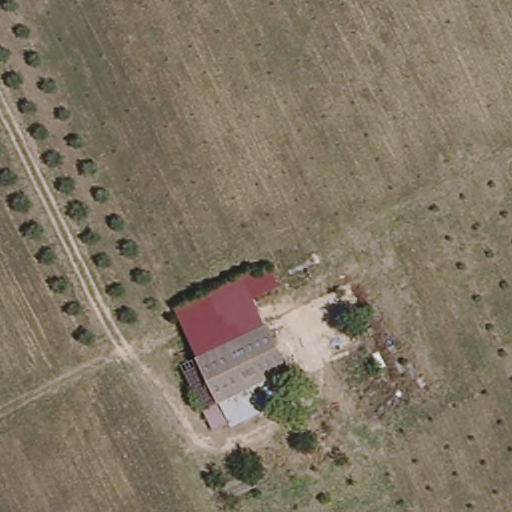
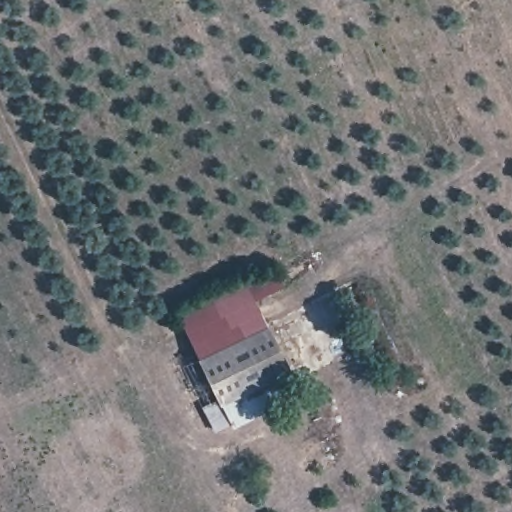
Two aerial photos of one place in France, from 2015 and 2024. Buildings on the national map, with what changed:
unchanged [(256,392),(263,409),(232,423),(197,361),(171,309),(254,270),(258,275),(269,270),(279,290),(253,302),(288,377),(256,392)]

